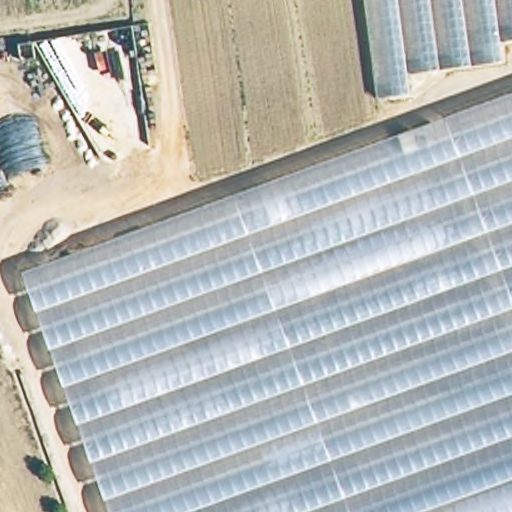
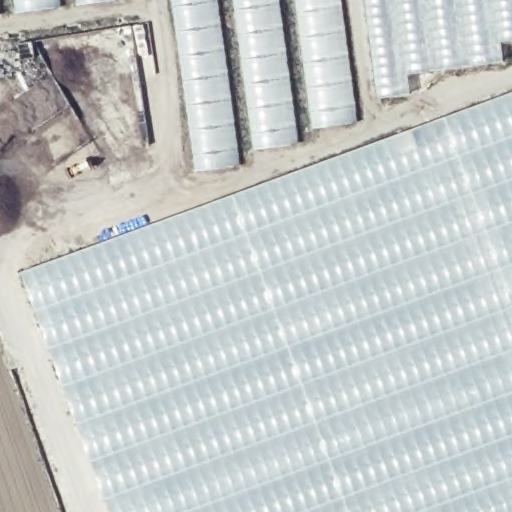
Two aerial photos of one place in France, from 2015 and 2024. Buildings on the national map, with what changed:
new [(114,0),(0,19),(0,0),(114,0)]
new [(201,172),(177,0),(339,0),(356,122),(201,172)]
unchanged [(502,62),(408,72),(410,93),(376,97),(364,0),(512,0),(512,39),(500,41),(502,62)]
unchanged [(23,272),(512,92),(512,512),(111,512),(23,272)]
demolished [(34,512),(0,512),(0,416),(34,512)]

